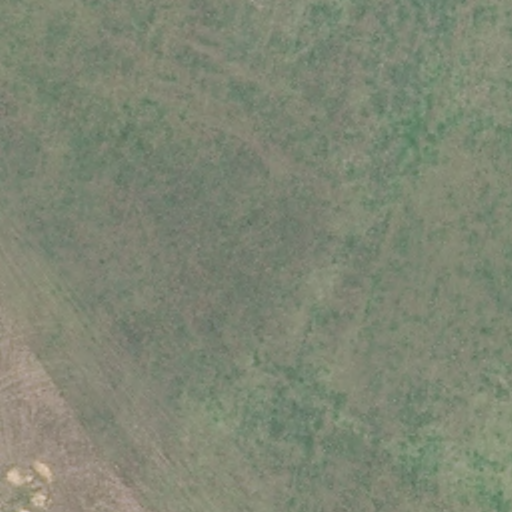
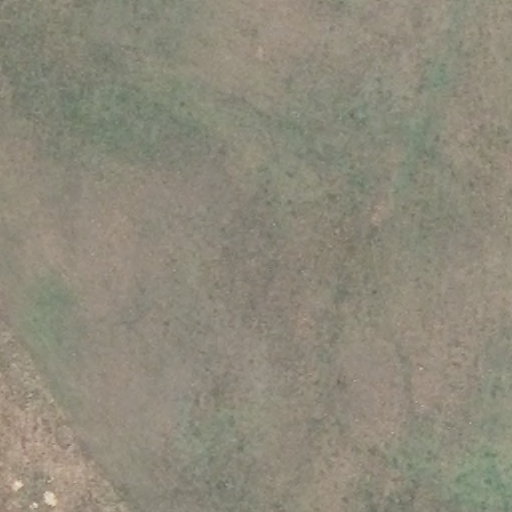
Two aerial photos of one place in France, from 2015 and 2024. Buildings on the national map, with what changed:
[]

